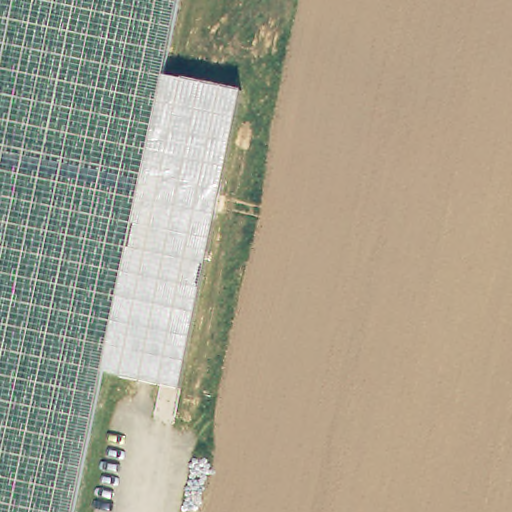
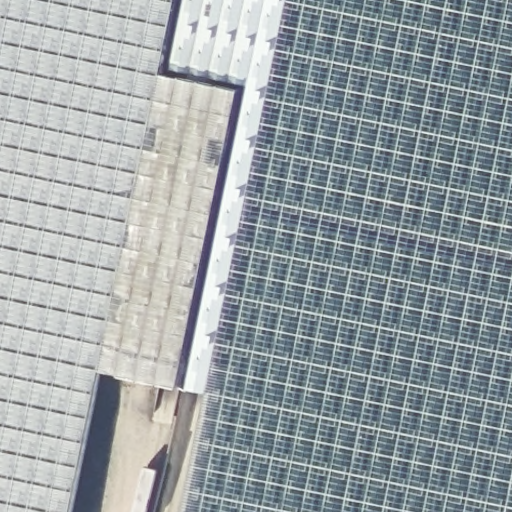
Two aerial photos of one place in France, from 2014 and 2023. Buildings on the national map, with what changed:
unchanged [(163,74),(240,90),(178,390),(103,373),(75,512),(0,512),(0,0),(179,0),(163,74)]
new [(189,389),(252,86),(174,67),(188,0),(512,0),(512,512),(183,512),(209,393),(189,389)]

